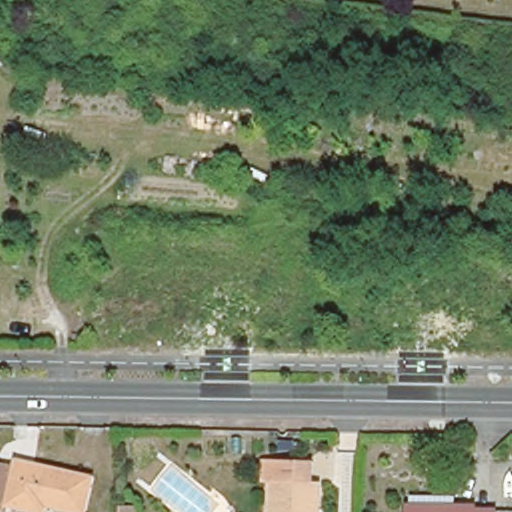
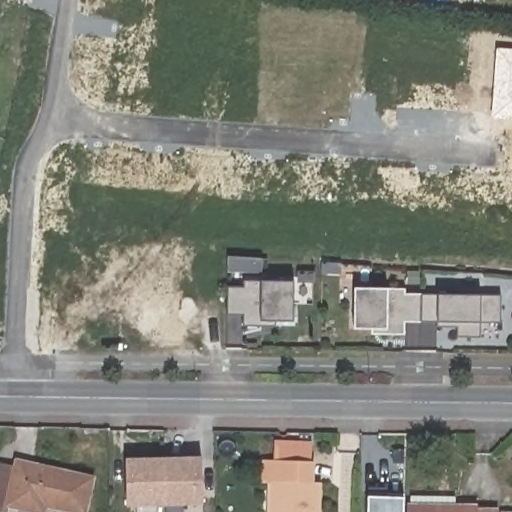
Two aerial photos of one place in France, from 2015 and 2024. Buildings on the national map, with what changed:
new [(495,48),(512,49),(512,120),(492,119),(495,48)]
new [(295,321),(277,321),(277,326),(243,326),(242,315),(228,315),(228,286),(244,286),(245,280),(263,280),(295,280),(295,321)]
new [(406,321),(405,335),(371,335),(371,328),(354,328),(356,287),(390,288),(406,288),(406,294),(422,295),(422,321),(406,321)]
new [(502,322),(481,322),(481,337),(458,337),(457,327),(440,327),(440,321),(422,321),(422,295),(440,294),(482,295),(502,294),(502,322)]
new [(129,505),(127,458),(202,456),(204,505),(129,505)]
unchanged [(275,482),(270,481),(270,458),(318,460),(318,482),(324,482),(323,512),(273,512),(275,482)]
unchanged [(51,505),(49,512),(40,512),(11,505),(10,511),(0,509),(0,463),(18,466),(19,460),(95,475),(87,512),(82,512),(51,505)]
new [(367,496),(406,496),(405,512),(367,512),(367,496)]
unchanged [(483,511),(504,511),(504,512),(419,512),(419,510),(483,511)]

